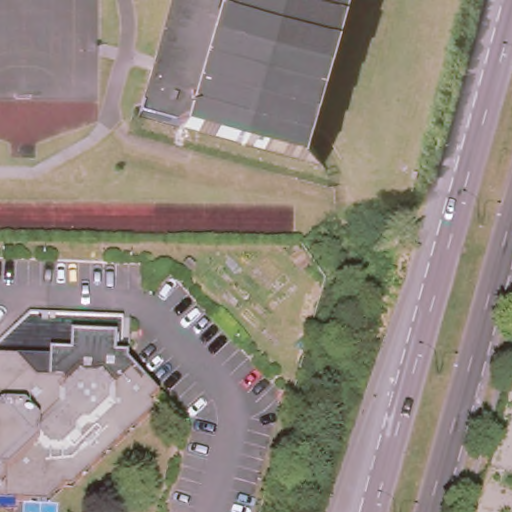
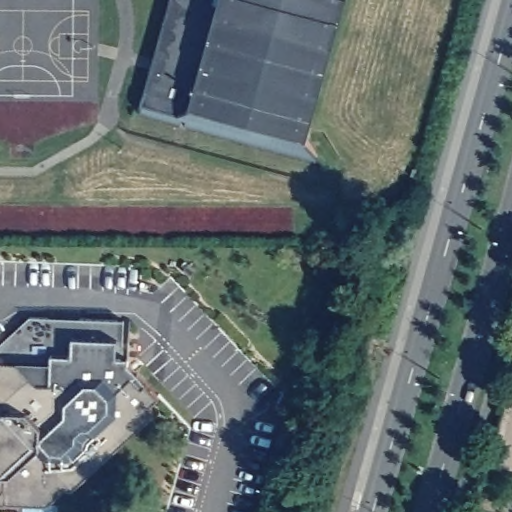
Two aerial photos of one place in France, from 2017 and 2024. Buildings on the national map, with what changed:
unchanged [(324,166),(141,112),(146,91),(149,91),(175,0),(347,0),(309,139),(324,166)]
unchanged [(30,314),(131,317),(130,361),(161,395),(152,402),(153,405),(154,412),(73,489),(64,489),(48,505),(0,504),(0,344),(30,314)]

